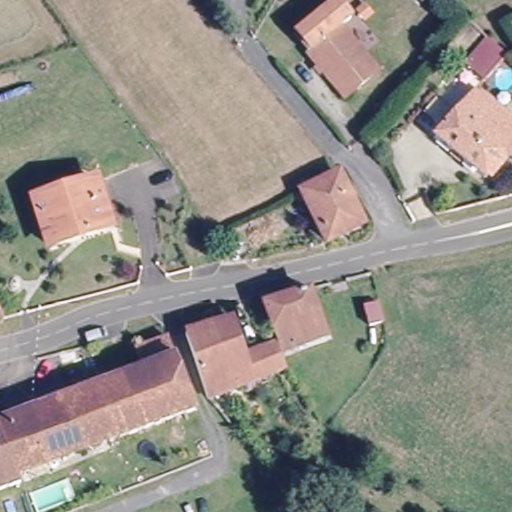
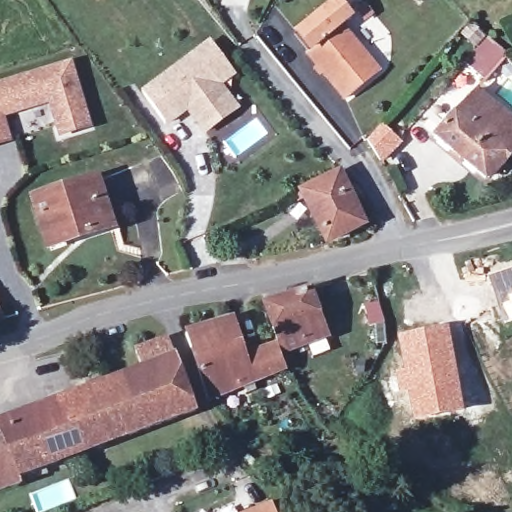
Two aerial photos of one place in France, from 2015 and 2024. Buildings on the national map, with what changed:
unchanged [(358,24),(348,32),(382,80),(347,105),(312,58),(315,54),(302,36),(344,5),(358,24)]
new [(143,90),(211,40),(236,75),(223,85),(240,108),(205,136),(186,112),(169,125),(143,90)]
unchanged [(498,86),(479,69),(502,45),(512,57),(512,72),(498,86)]
new [(93,131),(58,139),(48,106),(4,118),(12,144),(0,148),(0,83),(72,61),(93,131)]
unchanged [(492,177),(454,137),(449,133),(492,90),(512,109),(512,156),(492,177)]
unchanged [(347,177),(367,213),(332,233),(304,186),(341,165),(347,177)]
unchanged [(29,191),(85,176),(102,173),(114,222),(98,227),(42,240),(29,191)]
new [(512,267),(512,322),(504,324),(486,276),(512,267)]
unchanged [(323,324),(279,345),(275,335),(260,292),(309,280),(323,324)]
unchanged [(0,308),(0,285),(5,307),(0,308)]
unchanged [(380,320),(364,322),(361,299),(377,297),(380,320)]
unchanged [(231,313),(242,347),(275,335),(279,345),(285,361),(211,394),(184,325),(231,313)]
new [(400,367),(397,336),(448,327),(464,411),(411,422),(405,394),(399,395),(394,368),(400,367)]
unchanged [(198,401),(116,433),(110,419),(81,429),(85,441),(19,465),(0,418),(0,413),(72,387),(142,361),(135,341),(169,329),(177,348),(198,401)]
unchanged [(0,418),(19,465),(21,473),(0,480),(0,418)]
new [(275,512),(247,512),(271,503),(275,512)]

